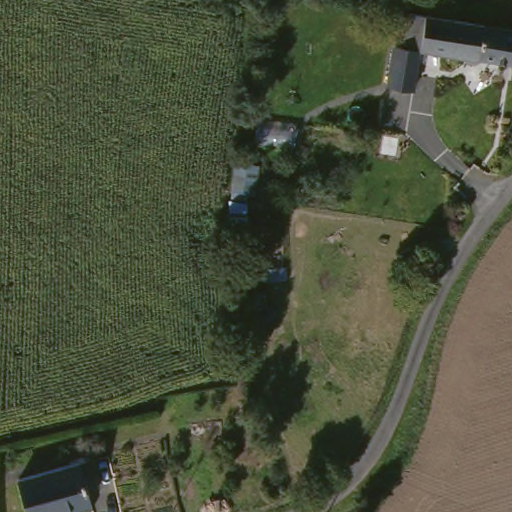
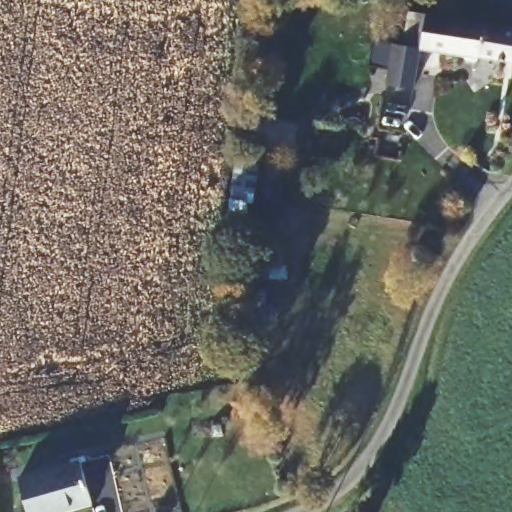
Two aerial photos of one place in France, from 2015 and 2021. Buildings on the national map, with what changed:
unchanged [(512,61),(484,58),(485,59),(480,60),(472,59),(469,56),(469,55),(424,49),(419,88),(393,84),(398,45),(409,47),(414,10),(512,24),(512,61)]
unchanged [(191,418),(223,416),(224,438),(192,439),(191,418)]
unchanged [(24,483),(86,464),(97,499),(56,512),(33,512),(24,483)]

